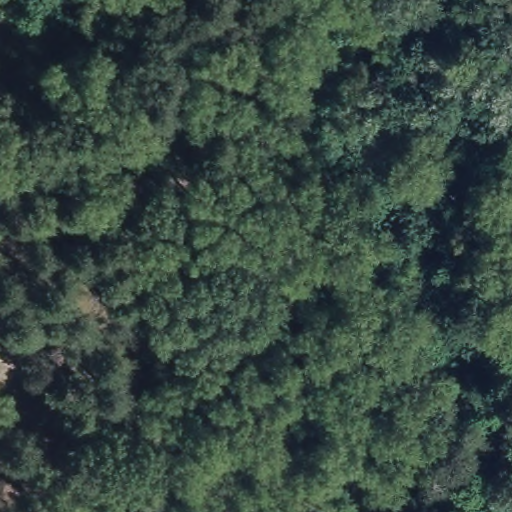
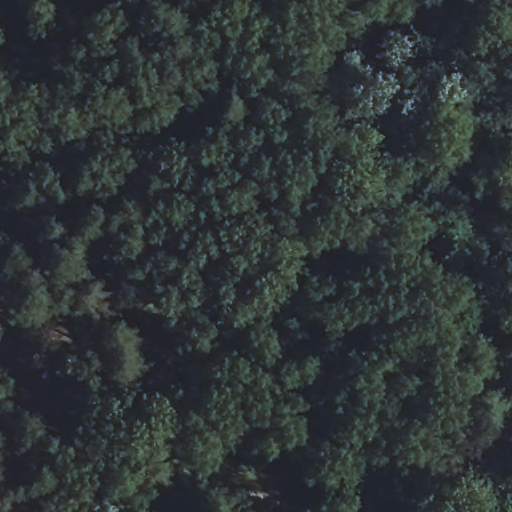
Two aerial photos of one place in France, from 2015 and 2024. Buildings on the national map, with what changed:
[]

